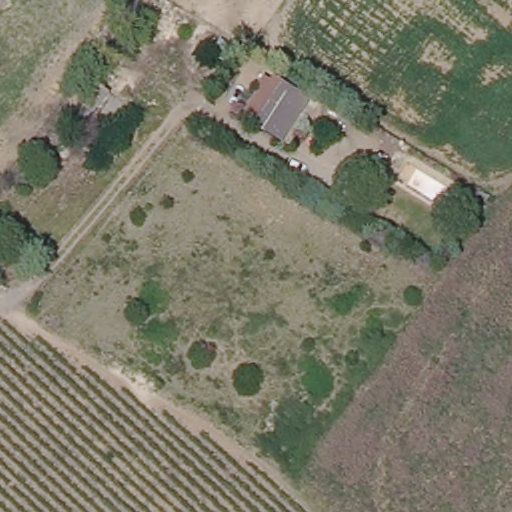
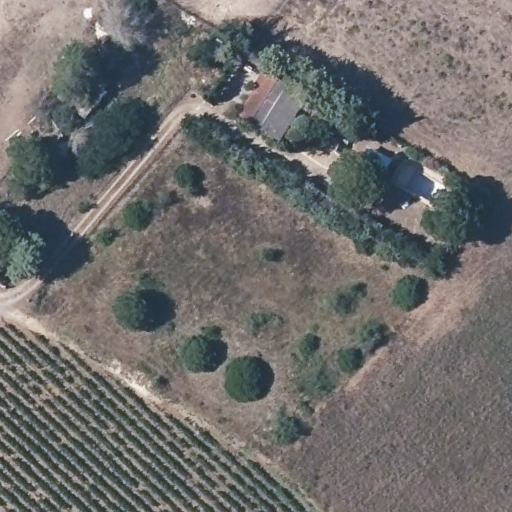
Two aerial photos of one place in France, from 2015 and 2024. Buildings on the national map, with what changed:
unchanged [(241,117),(269,72),(310,99),(281,144),(241,117)]

